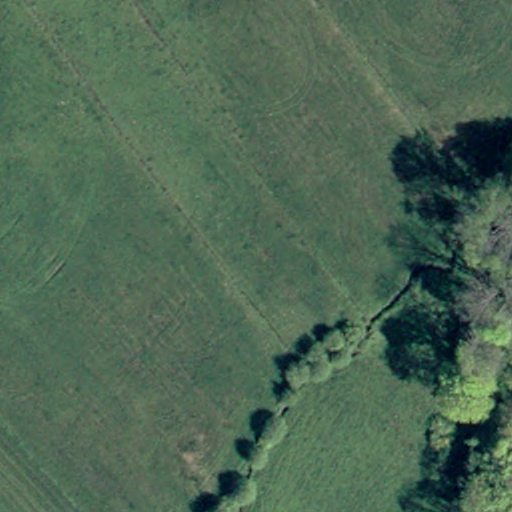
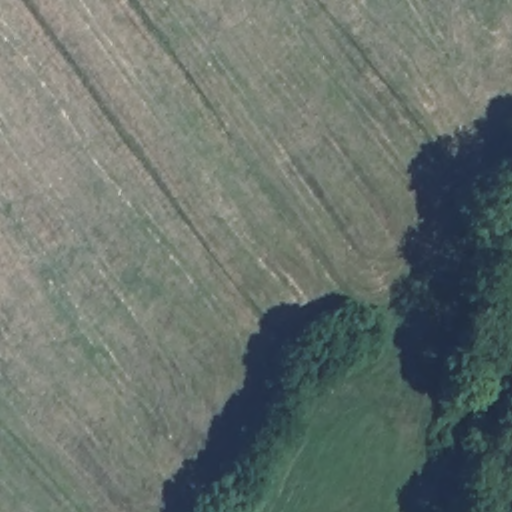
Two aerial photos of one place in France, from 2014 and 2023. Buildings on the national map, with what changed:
[]

